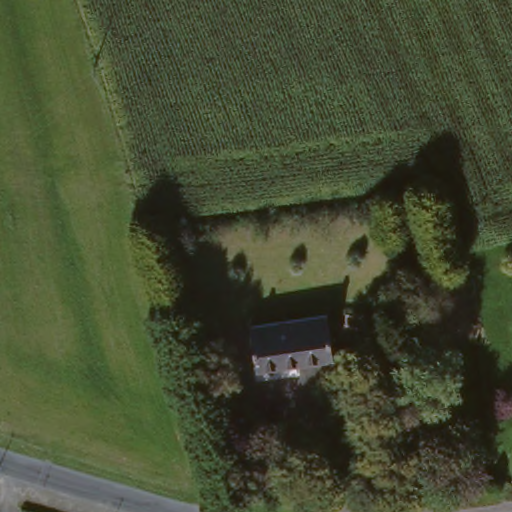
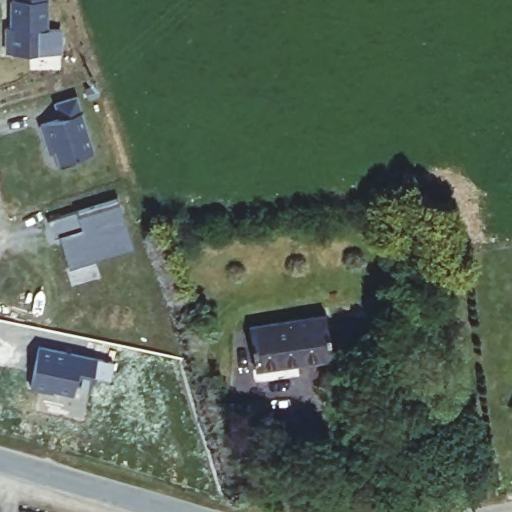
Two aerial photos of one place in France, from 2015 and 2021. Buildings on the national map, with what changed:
new [(4,55),(4,29),(9,28),(10,0),(48,0),(48,26),(64,28),(63,51),(4,55)]
new [(77,156),(79,162),(58,169),(52,151),(47,154),(37,122),(58,113),(56,103),(77,96),(94,151),(77,156)]
new [(120,199),(135,248),(71,268),(62,238),(56,241),(49,222),(120,199)]
unchanged [(427,283),(455,276),(462,301),(431,311),(427,283)]
unchanged [(242,329),(325,319),(329,364),(247,373),(242,329)]

